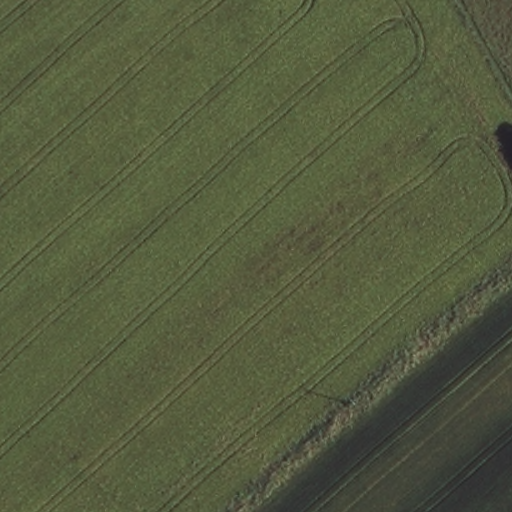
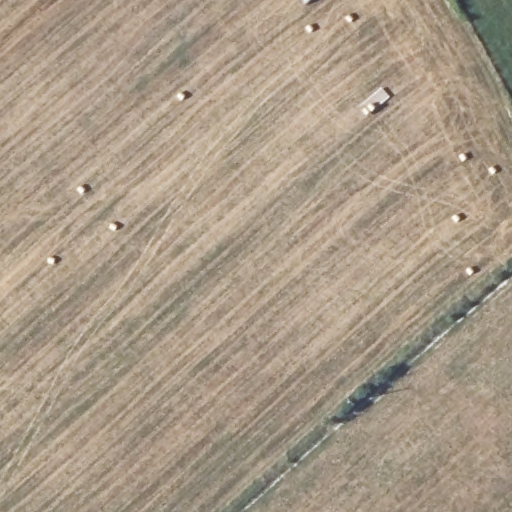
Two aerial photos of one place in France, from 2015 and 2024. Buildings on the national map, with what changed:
[]

